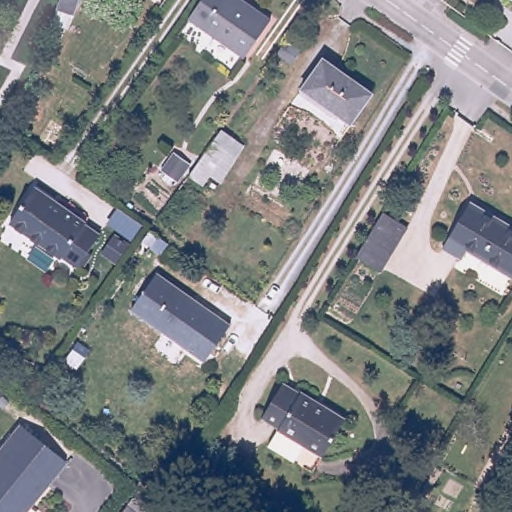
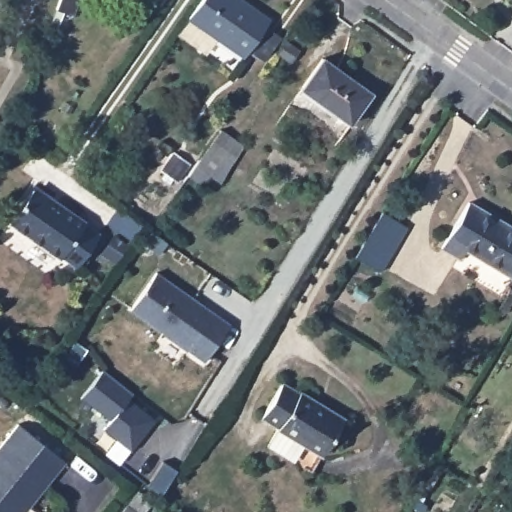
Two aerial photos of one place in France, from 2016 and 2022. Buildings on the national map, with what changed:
unchanged [(57,7),(60,0),(78,0),(73,13),(57,7)]
unchanged [(241,0),(269,21),(245,56),(190,18),(202,0),(241,0)]
unchanged [(301,45),(291,58),(277,49),(286,36),(301,45)]
unchanged [(368,90),(347,122),(301,89),(322,58),(368,90)]
unchanged [(227,139),(246,151),(231,174),(221,167),(211,180),(202,174),(227,139)]
unchanged [(192,180),(189,178),(178,171),(190,154),(201,163),(203,165),(192,180)]
unchanged [(61,208),(63,206),(86,223),(85,225),(99,235),(74,270),(60,259),(58,260),(9,224),(33,189),(61,208)]
unchanged [(490,263),(467,250),(461,259),(440,245),(466,201),(511,227),(512,227),(512,272),(510,275),(490,263)]
unchanged [(358,262),(380,225),(386,215),(410,231),(405,240),(381,277),(358,262)]
unchanged [(157,270),(228,323),(201,359),(130,307),(157,270)]
new [(105,368),(134,392),(130,398),(156,419),(131,449),(104,427),(111,419),(82,395),(105,368)]
unchanged [(278,457),(264,448),(275,429),(259,419),(281,383),(297,391),(299,389),(345,418),(322,458),(301,445),(290,464),(278,457)]
unchanged [(67,461),(25,512),(0,512),(0,448),(20,423),(67,461)]
unchanged [(142,495),(156,506),(150,512),(127,512),(142,495)]

